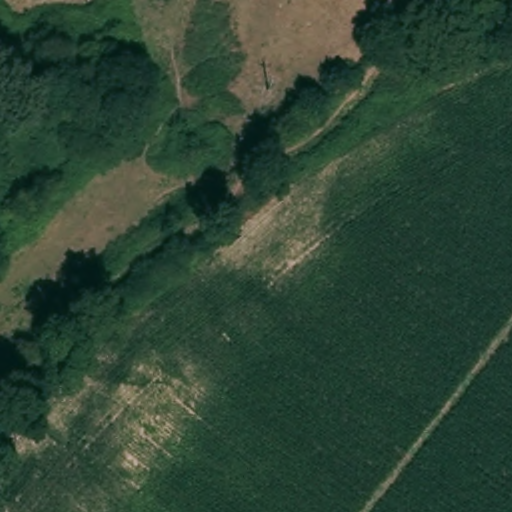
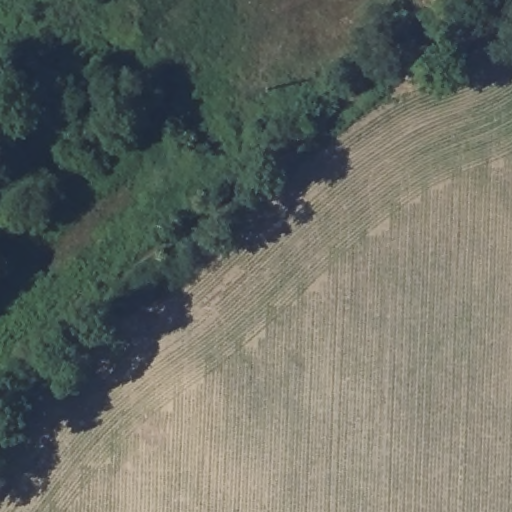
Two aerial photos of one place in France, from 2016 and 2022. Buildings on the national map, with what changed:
[]

